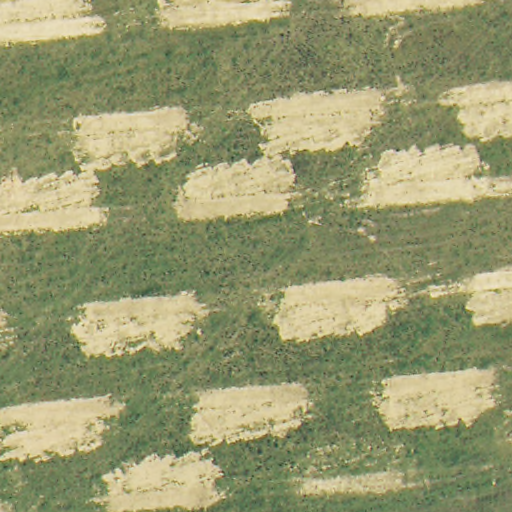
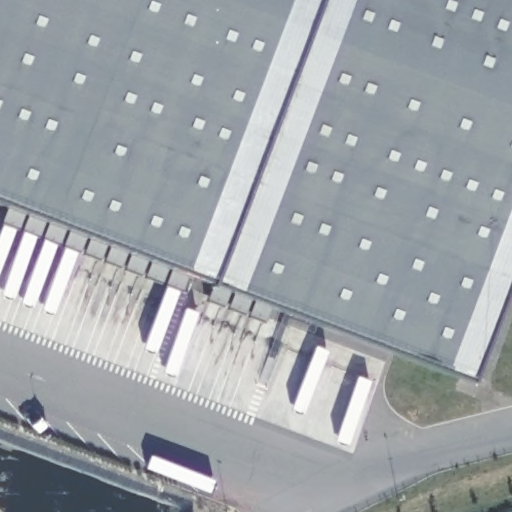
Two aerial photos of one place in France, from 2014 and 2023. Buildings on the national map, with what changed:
new [(463,378),(459,386),(425,374),(428,365),(207,282),(0,203),(0,0),(512,0),(512,270),(470,381),(463,378)]

